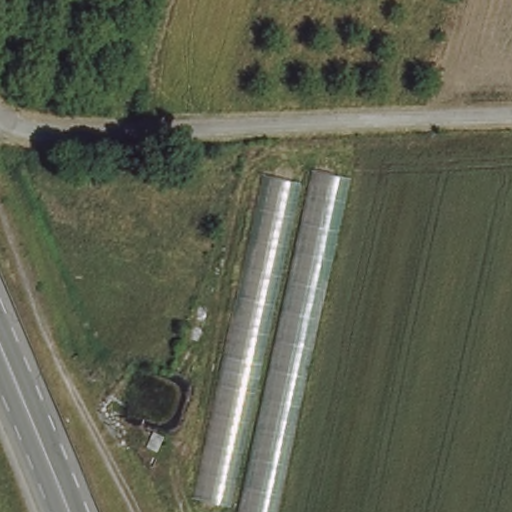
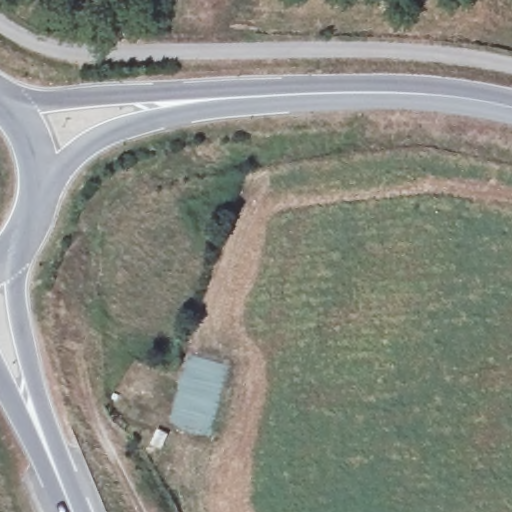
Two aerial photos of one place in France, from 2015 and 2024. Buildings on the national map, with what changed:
demolished [(351,174),(276,512),(235,512),(235,509),(197,502),(261,177),(351,174)]

